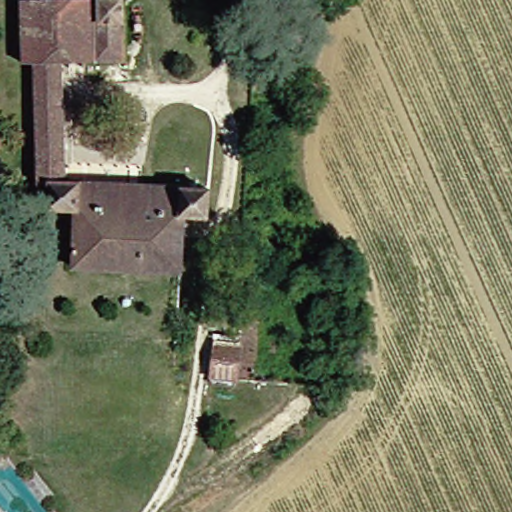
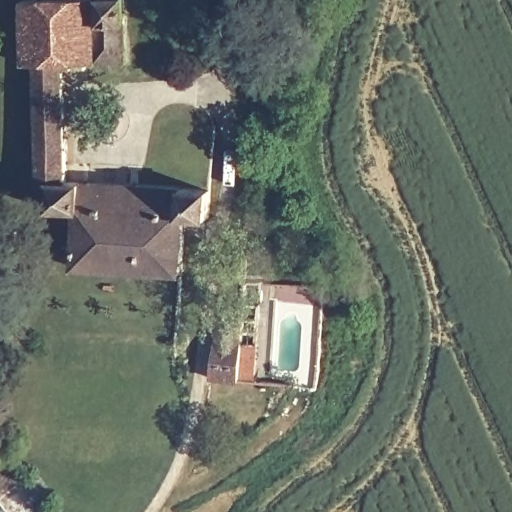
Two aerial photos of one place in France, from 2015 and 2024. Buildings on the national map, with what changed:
unchanged [(70,60),(75,179),(137,182),(200,187),(214,188),(212,222),(190,222),(186,275),(79,269),(78,213),(52,211),(51,195),(42,194),(37,64),(29,63),(26,0),(129,0),(132,57),(70,60)]
unchanged [(235,265),(257,265),(257,284),(235,284),(235,265)]
unchanged [(211,341),(238,342),(240,317),(256,319),(251,383),(211,379),(209,379),(211,341)]

